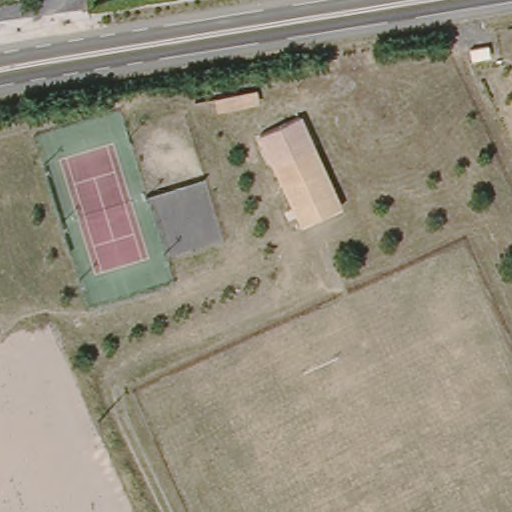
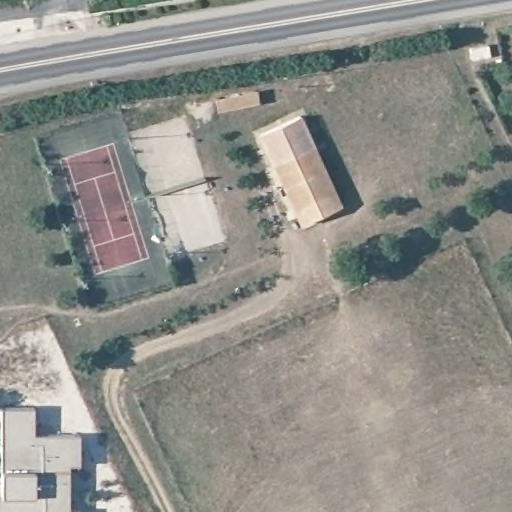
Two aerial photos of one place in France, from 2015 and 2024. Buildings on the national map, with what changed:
unchanged [(258,86),(262,104),(213,111),(210,95),(258,86)]
unchanged [(258,136),(300,116),(338,205),(298,226),(258,136)]
new [(80,466),(70,466),(70,511),(80,511),(80,512),(0,512),(0,495),(2,495),(2,473),(1,406),(34,408),(35,434),(81,434),(80,466)]

